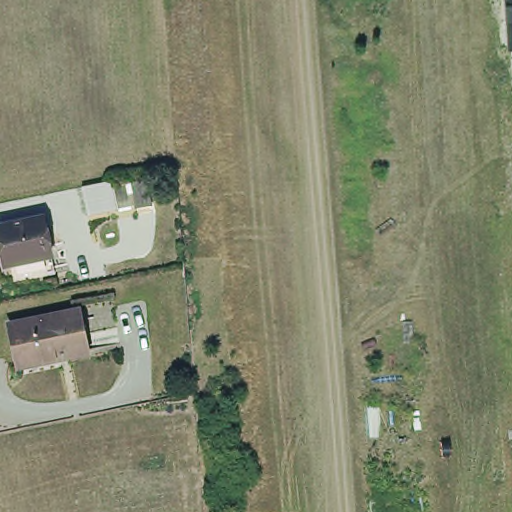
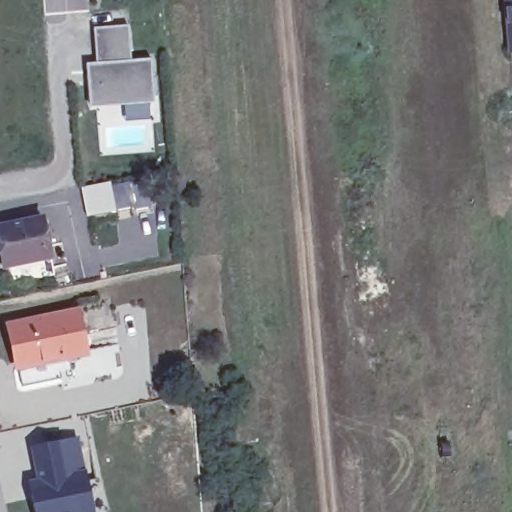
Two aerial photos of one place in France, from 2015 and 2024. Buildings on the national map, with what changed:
unchanged [(510,54),(510,47),(509,40),(506,0),(512,0),(512,54),(510,54)]
new [(95,63),(92,28),(127,25),(130,60),(150,58),(153,98),(88,104),(85,64),(95,63)]
unchanged [(86,183),(115,177),(120,206),(91,212),(86,183)]
unchanged [(0,243),(4,242),(0,225),(42,217),(50,255),(9,264),(3,265),(0,248),(0,243)]
unchanged [(75,305),(82,348),(13,363),(5,320),(75,305)]
new [(82,438),(97,512),(29,512),(25,493),(38,490),(32,449),(82,438)]

